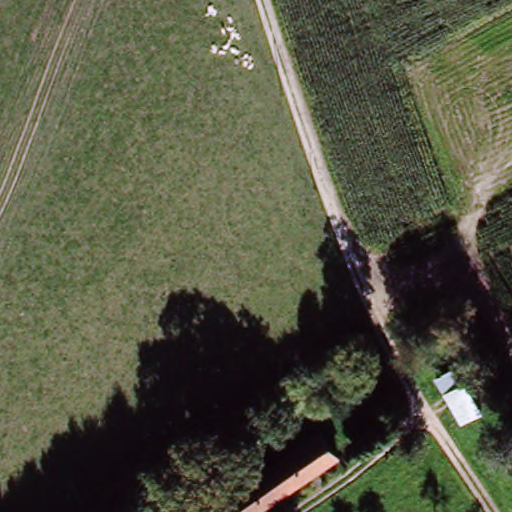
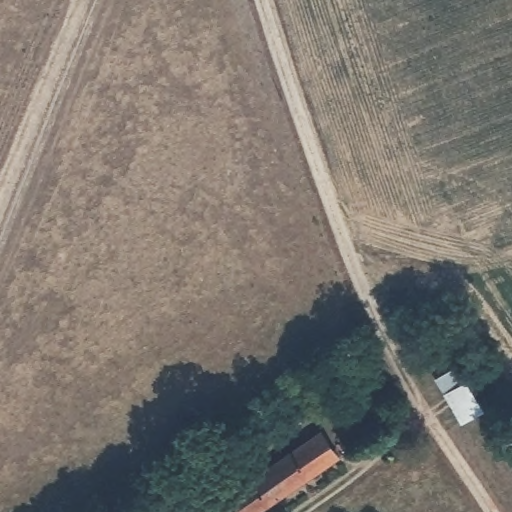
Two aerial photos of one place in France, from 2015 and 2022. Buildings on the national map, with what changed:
unchanged [(461,370),(485,415),(462,428),(438,384),(461,370)]
unchanged [(248,466),(260,483),(322,443),(340,471),(282,506),(273,512),(192,512),(188,506),(248,466)]

